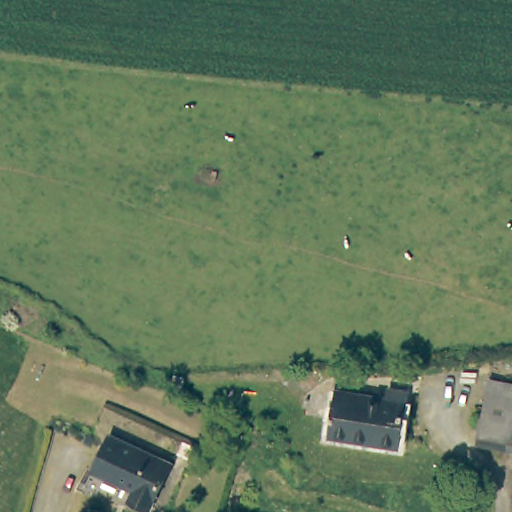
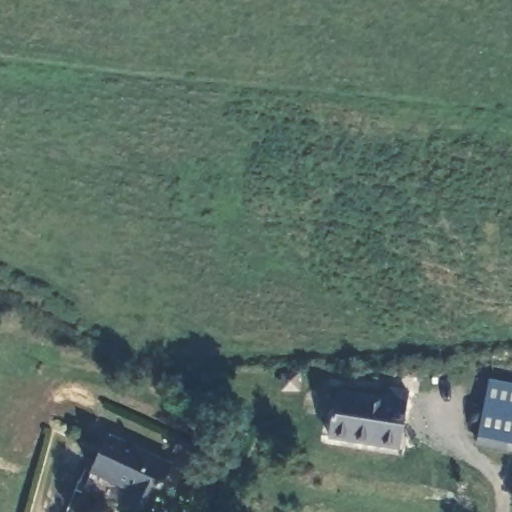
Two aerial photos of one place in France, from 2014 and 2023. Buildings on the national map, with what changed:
unchanged [(485,406),(487,394),(475,391),(478,379),(512,385),(512,409),(485,406)]
unchanged [(336,394),(381,399),(382,393),(407,396),(398,447),(330,436),(336,394)]
unchanged [(485,406),(512,409),(512,450),(479,444),(485,406)]
unchanged [(167,464),(147,510),(126,502),(131,492),(89,474),(105,437),(167,464)]

